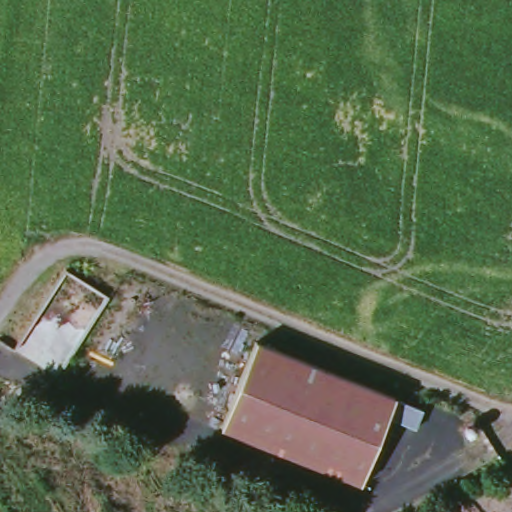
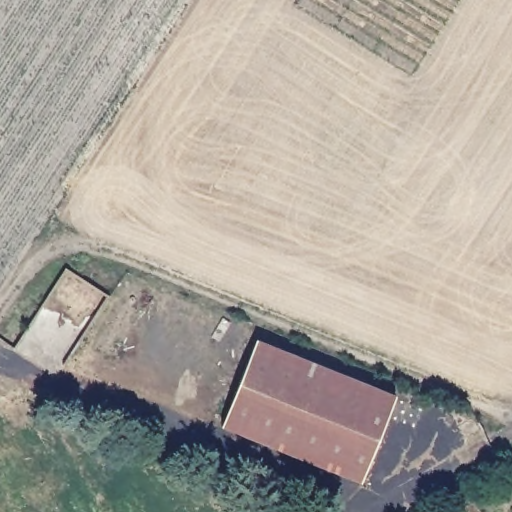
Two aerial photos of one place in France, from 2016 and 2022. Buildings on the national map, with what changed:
unchanged [(218,431),(253,342),(395,397),(359,482),(218,431)]

